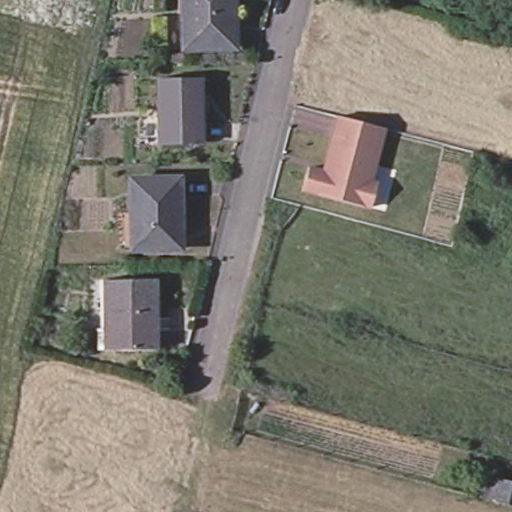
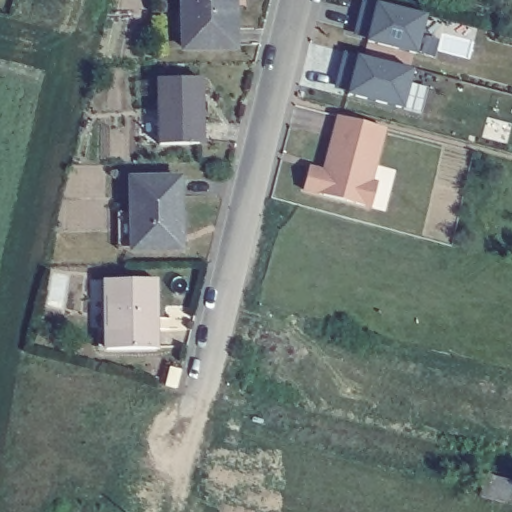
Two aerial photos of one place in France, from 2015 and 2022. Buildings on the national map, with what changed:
unchanged [(179,0),(229,0),(229,10),(231,48),(180,50),(179,0)]
new [(420,52),(354,32),(363,0),(379,0),(429,14),(420,52)]
new [(416,68),(406,106),(335,88),(344,50),(416,68)]
unchanged [(196,80),(198,113),(189,114),(191,147),(156,149),(154,81),(196,80)]
unchanged [(381,131),(368,184),(374,186),(368,210),(301,193),(307,170),(324,175),(326,169),(323,168),(336,119),(381,131)]
unchanged [(116,217),(131,216),(130,183),(179,182),(181,249),(132,251),(117,252),(116,217)]
unchanged [(107,282),(156,281),(158,349),(131,352),(108,356),(108,347),(107,282)]
unchanged [(464,468),(512,484),(512,506),(456,489),(464,468)]

